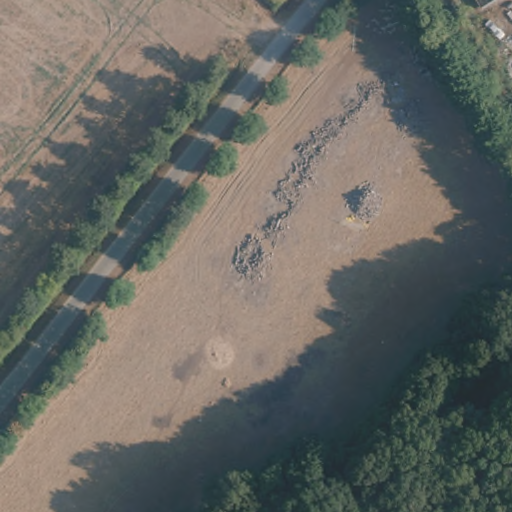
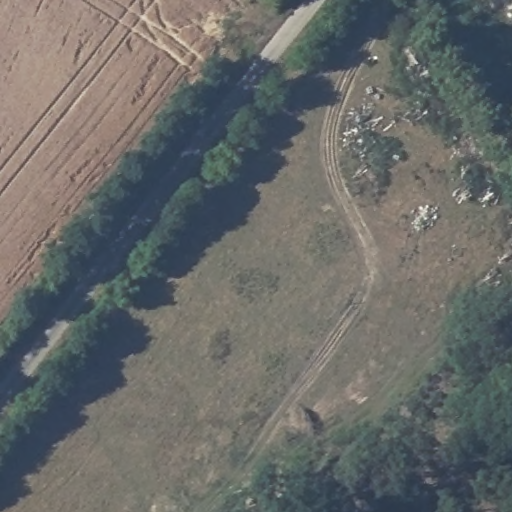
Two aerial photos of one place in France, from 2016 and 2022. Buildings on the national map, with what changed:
[]

